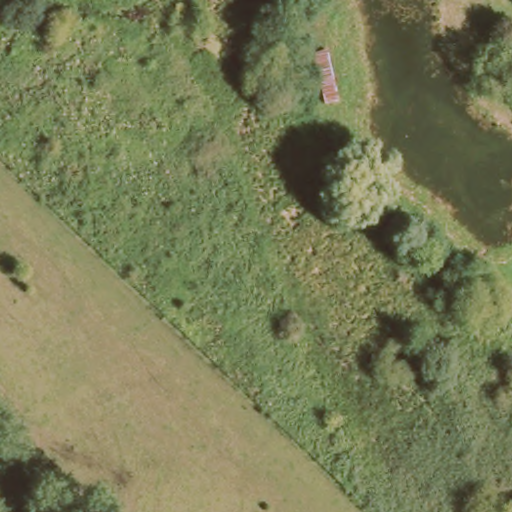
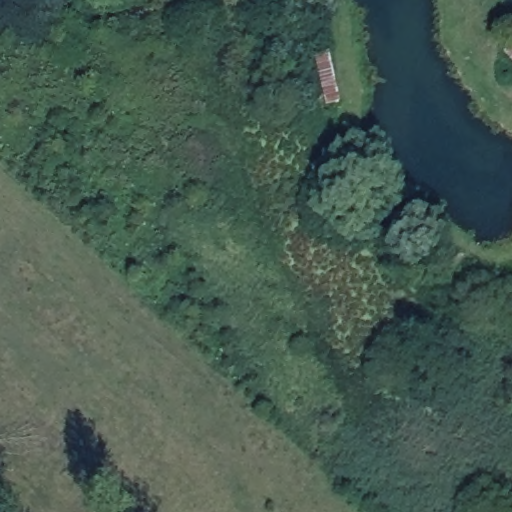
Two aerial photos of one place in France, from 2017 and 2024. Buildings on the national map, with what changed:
unchanged [(512,45),(512,54),(506,49),(512,45)]
unchanged [(317,52),(332,48),(343,99),(326,101),(317,52)]

